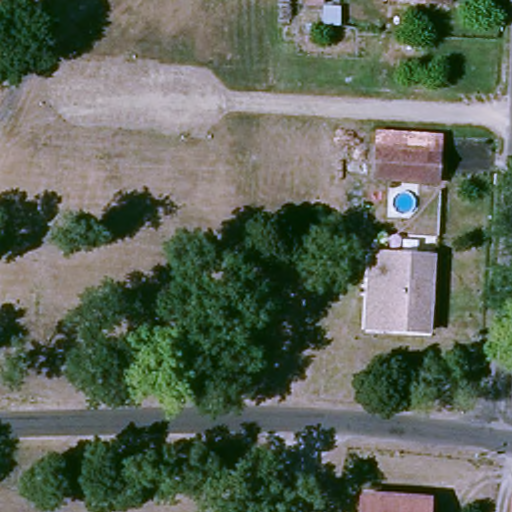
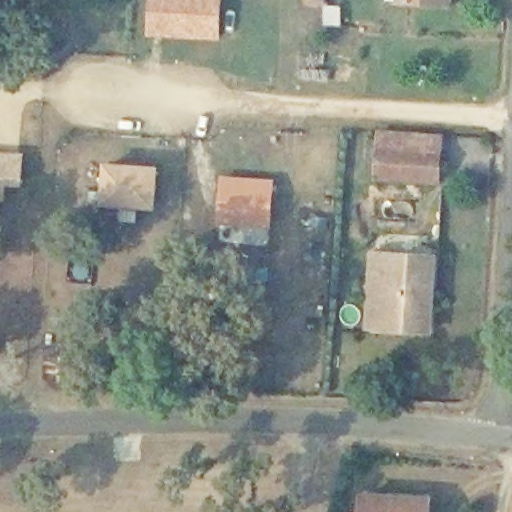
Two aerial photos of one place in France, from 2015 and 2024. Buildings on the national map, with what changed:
new [(147,0),(222,0),(220,40),(145,34),(147,0)]
unchanged [(300,0),(331,0),(331,2),(356,4),(355,29),(317,28),(318,6),(300,2),(300,0)]
unchanged [(445,10),(400,8),(400,0),(446,0),(445,10)]
unchanged [(440,146),(437,186),(427,185),(427,180),(376,177),(377,146),(440,146)]
new [(21,186),(5,185),(4,203),(0,203),(0,152),(23,153),(21,186)]
new [(100,205),(103,163),(159,167),(156,209),(100,205)]
new [(271,182),(268,224),(221,222),(223,180),(271,182)]
unchanged [(371,254),(433,257),(428,331),(365,329),(371,254)]
unchanged [(428,505),(427,512),(360,512),(362,499),(428,505)]

